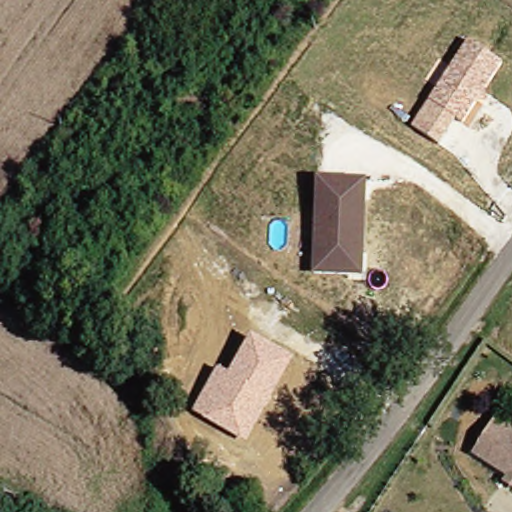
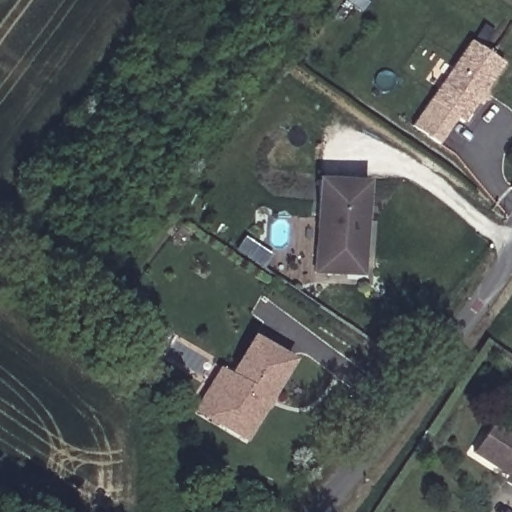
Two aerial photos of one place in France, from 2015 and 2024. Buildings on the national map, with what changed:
unchanged [(468,44),(501,64),(485,90),(487,101),(476,104),(463,123),(455,119),(439,144),(412,126),(468,44)]
unchanged [(369,182),(362,277),(313,274),(316,179),(369,182)]
unchanged [(295,360),(247,444),(192,412),(218,366),(230,374),(251,335),(295,360)]
unchanged [(480,453),(502,421),(512,428),(512,476),(480,453)]
unchanged [(510,483),(512,479),(512,484),(510,483)]

